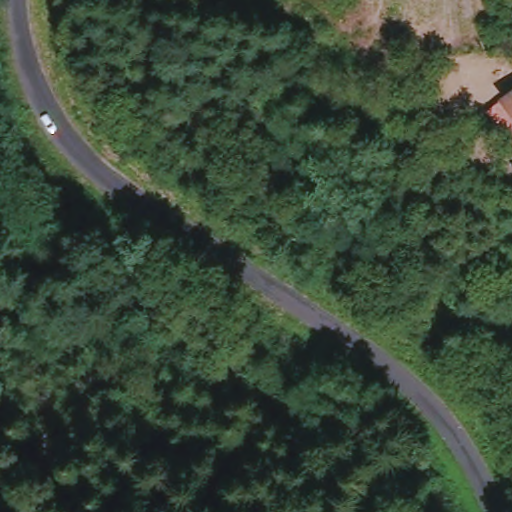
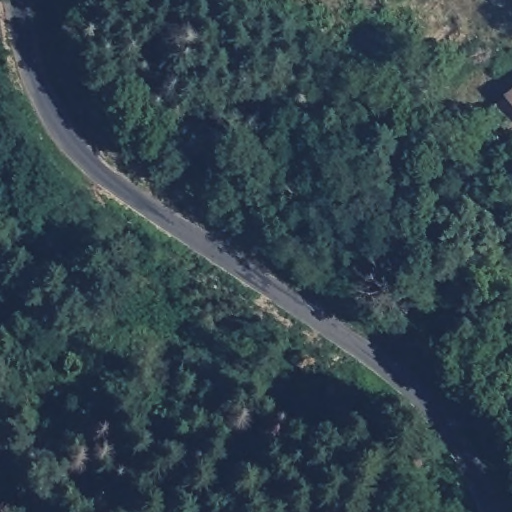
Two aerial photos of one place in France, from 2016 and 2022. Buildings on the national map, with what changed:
unchanged [(507,101),(512,97),(512,110),(507,104),(507,101)]

